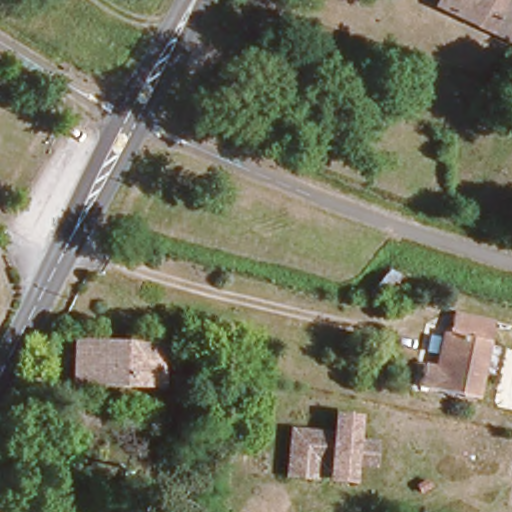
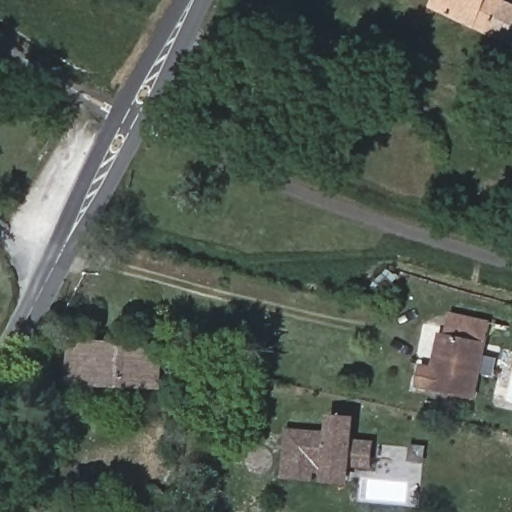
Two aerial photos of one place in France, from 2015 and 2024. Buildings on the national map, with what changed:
unchanged [(431,0),(512,0),(512,45),(428,6),(431,0)]
unchanged [(382,298),(368,286),(387,264),(402,276),(382,298)]
unchanged [(155,302),(149,314),(135,307),(142,295),(155,302)]
unchanged [(480,400),(414,388),(420,359),(434,361),(437,330),(446,331),(449,310),(493,315),(480,400)]
unchanged [(70,338),(161,340),(160,381),(94,380),(68,379),(70,341),(70,338)]
unchanged [(356,414),(353,438),(373,439),(371,467),(351,466),(349,484),(322,484),(322,473),(313,473),(312,480),(280,478),(284,427),(326,429),(327,412),(356,414)]
unchanged [(171,512),(141,512),(144,490),(174,493),(171,512)]

